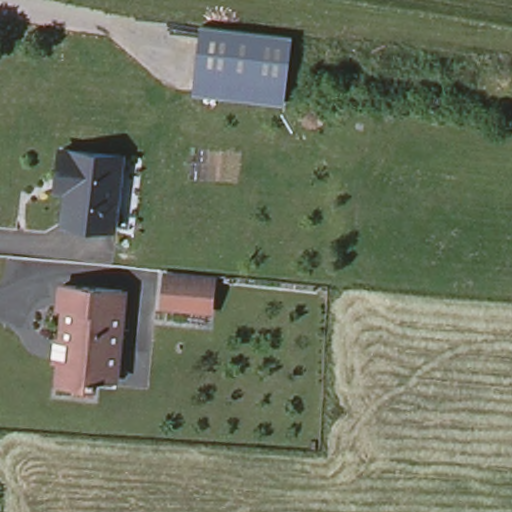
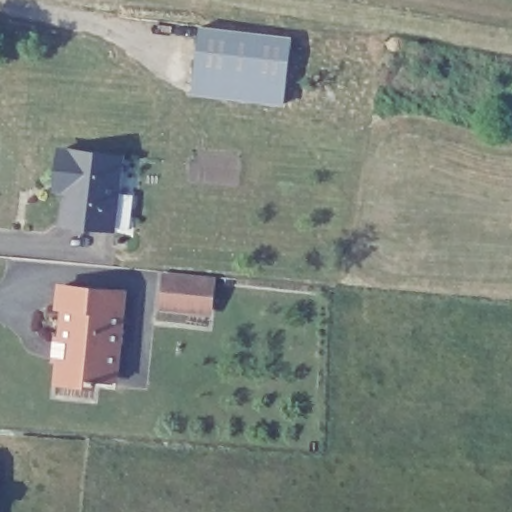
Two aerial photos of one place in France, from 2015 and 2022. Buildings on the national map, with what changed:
unchanged [(291,39),(284,107),(194,95),(201,27),(291,39)]
unchanged [(118,234),(59,230),(62,194),(50,192),(59,141),(125,154),(118,234)]
unchanged [(160,275),(214,278),(211,311),(159,308),(160,275)]
unchanged [(61,310),(64,290),(123,297),(115,377),(95,375),(93,386),(60,382),(68,311),(61,310)]

